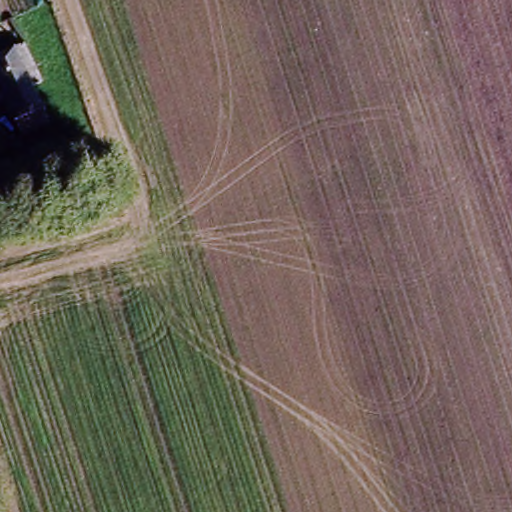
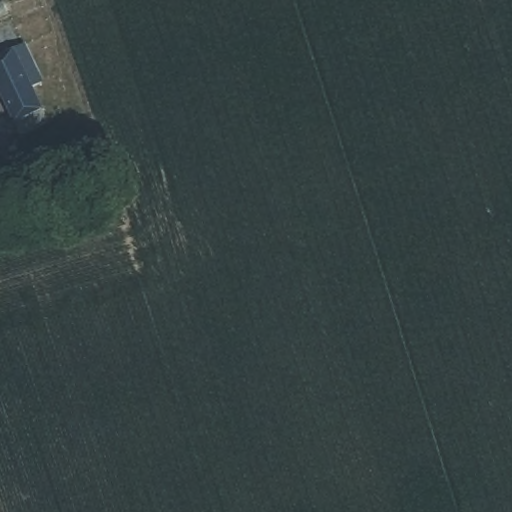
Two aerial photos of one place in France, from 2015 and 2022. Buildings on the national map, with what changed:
unchanged [(24,130),(9,135),(4,116),(0,103),(0,59),(3,58),(14,55),(26,51),(38,93),(25,96),(29,109),(35,128),(24,130)]

